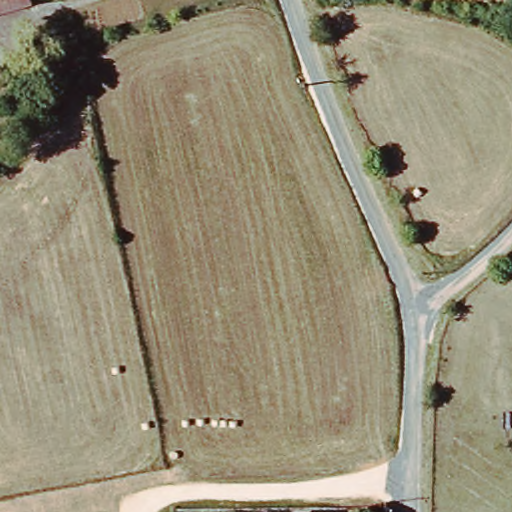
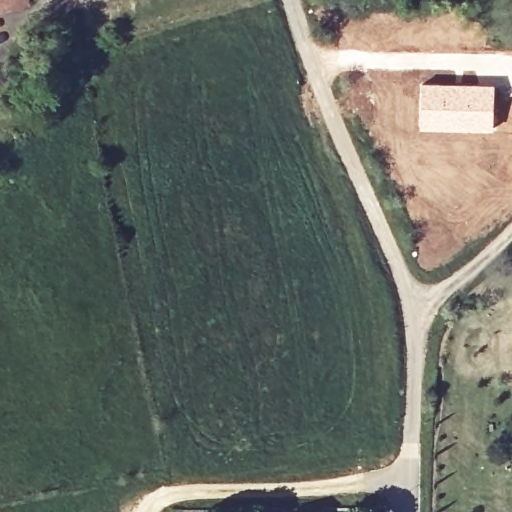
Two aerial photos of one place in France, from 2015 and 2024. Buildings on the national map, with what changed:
unchanged [(29,7),(0,14),(0,0),(26,0),(29,7)]
new [(421,82),(494,85),(493,130),(419,129),(421,82)]

